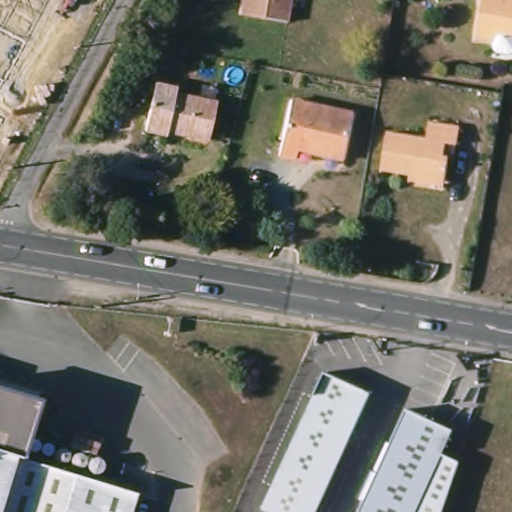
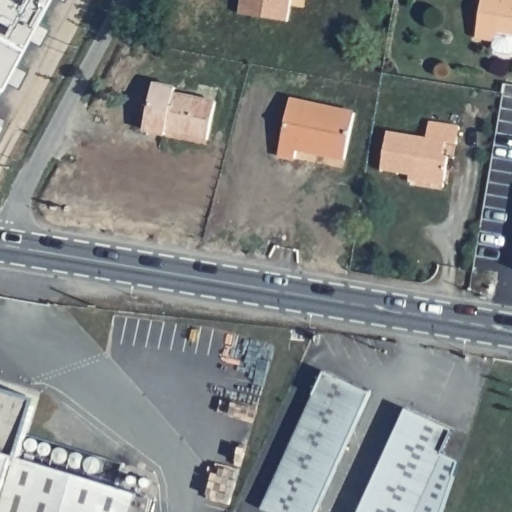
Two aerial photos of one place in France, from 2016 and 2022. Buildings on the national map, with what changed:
new [(0,88),(0,0),(47,0),(0,88)]
unchanged [(239,13),(241,0),(291,0),(288,21),(239,13)]
unchanged [(511,54),(498,52),(495,47),(496,42),(476,39),(482,0),(512,0),(512,53),(511,54)]
unchanged [(213,141),(171,132),(170,136),(150,130),(160,83),(181,87),(180,93),(221,102),(213,141)]
unchanged [(345,160),(297,150),(295,161),(278,157),(291,99),(355,113),(345,160)]
new [(0,125),(0,117),(3,119),(0,125)]
unchanged [(409,181),(410,176),(411,169),(400,168),(399,174),(381,171),(382,165),(388,131),(427,137),(429,121),(460,126),(457,144),(446,142),(444,156),(449,156),(445,181),(444,187),(409,181)]
unchanged [(316,512),(271,512),(263,508),(325,372),(370,394),(316,512)]
unchanged [(135,512),(0,512),(0,395),(35,405),(20,456),(26,458),(140,494),(135,512)]
unchanged [(453,430),(442,453),(458,460),(440,512),(359,512),(407,409),(453,430)]

